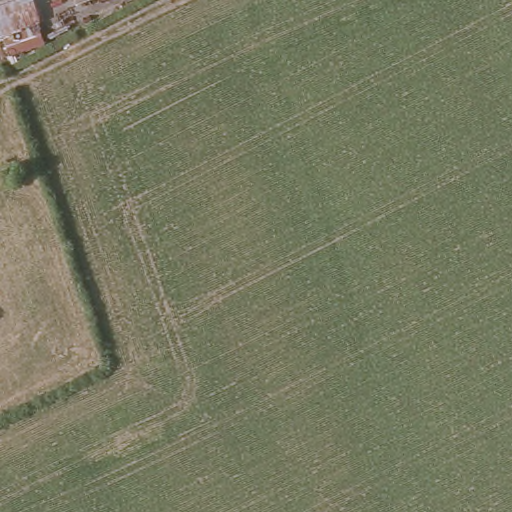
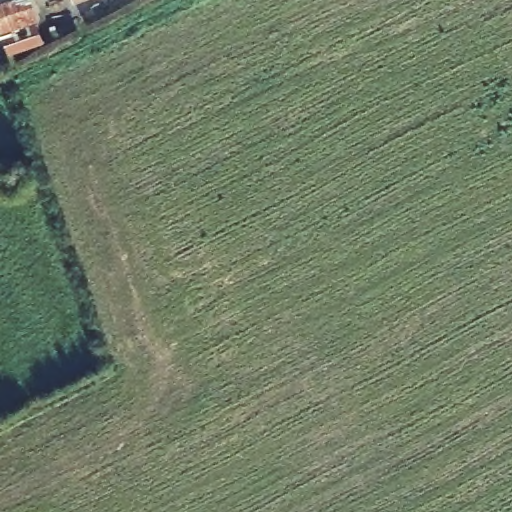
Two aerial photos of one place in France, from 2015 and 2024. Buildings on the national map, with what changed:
unchanged [(45,37),(10,51),(0,26),(0,1),(2,0),(29,0),(45,37)]
unchanged [(76,0),(98,0),(80,8),(76,0)]

